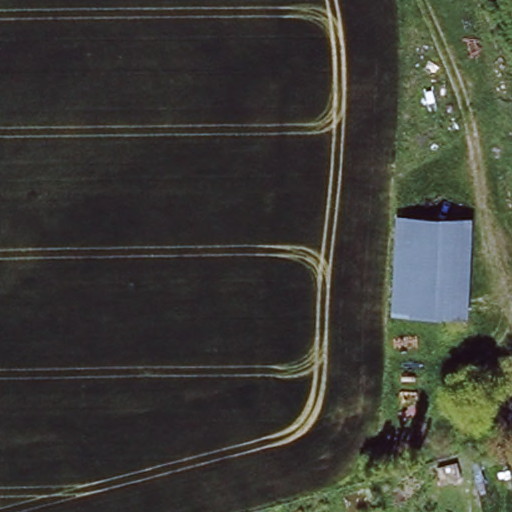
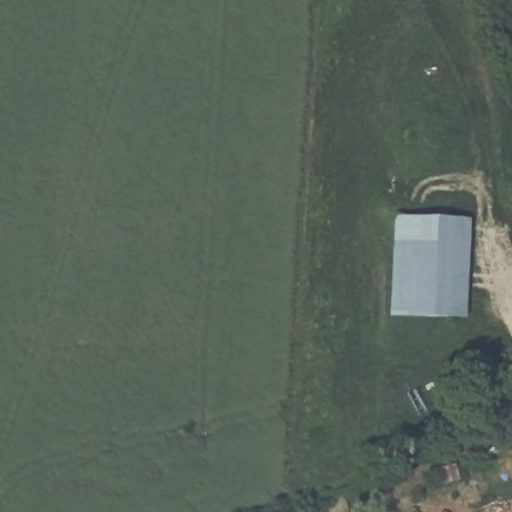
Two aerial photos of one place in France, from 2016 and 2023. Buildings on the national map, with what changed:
unchanged [(398,212),(450,215),(471,216),(466,315),(395,311),(398,212)]

